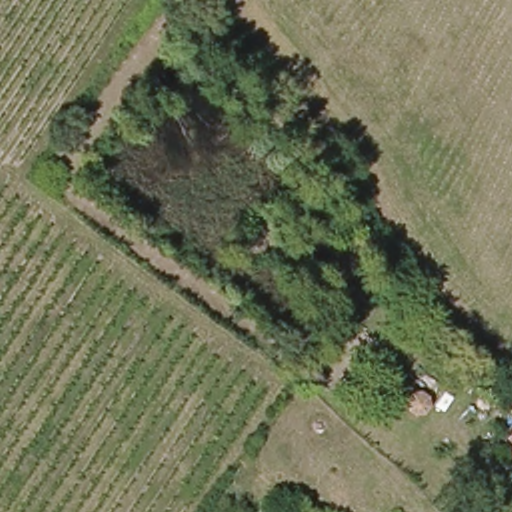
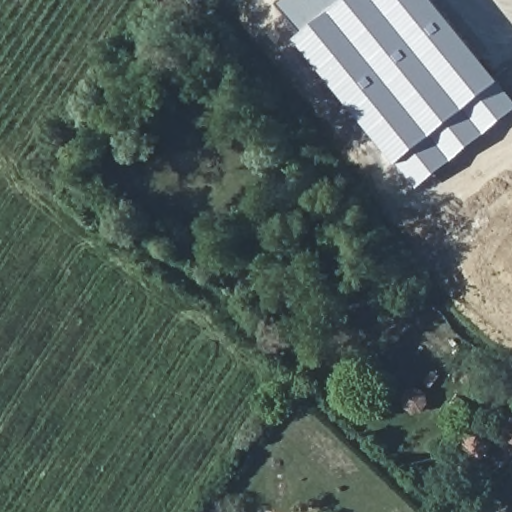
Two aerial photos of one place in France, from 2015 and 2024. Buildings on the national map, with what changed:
new [(512,111),(416,189),(398,165),(396,166),(296,41),(305,33),(280,5),(285,0),(433,0),(500,83),(512,98),(512,111)]
unchanged [(512,440),(503,433),(512,422),(512,440)]

